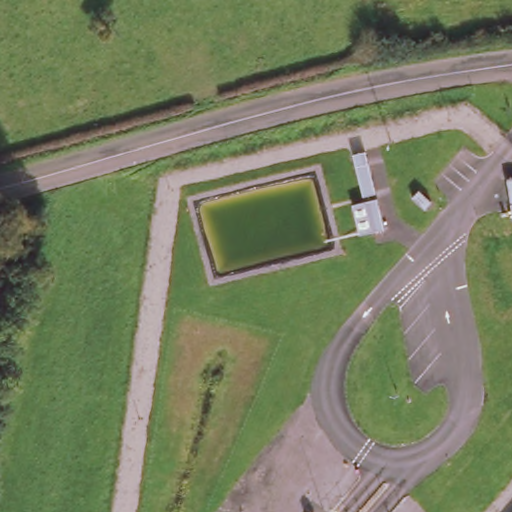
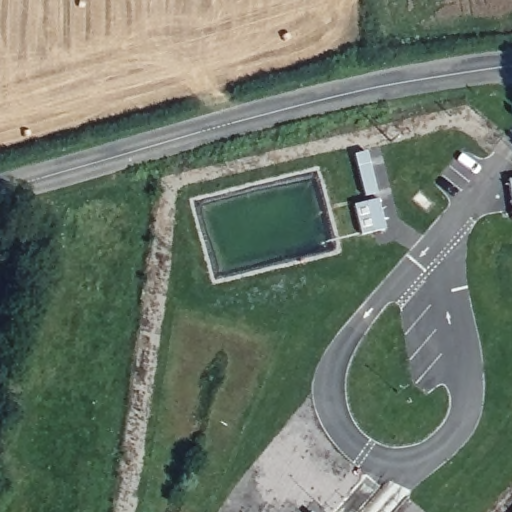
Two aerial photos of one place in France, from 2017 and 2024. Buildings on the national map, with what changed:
unchanged [(352,206),(364,203),(353,155),(366,152),(386,232),(360,236),(352,206)]
unchanged [(512,179),(512,219),(507,180),(512,179)]

